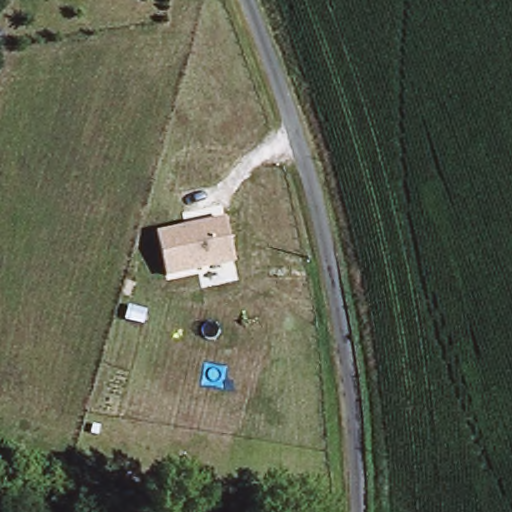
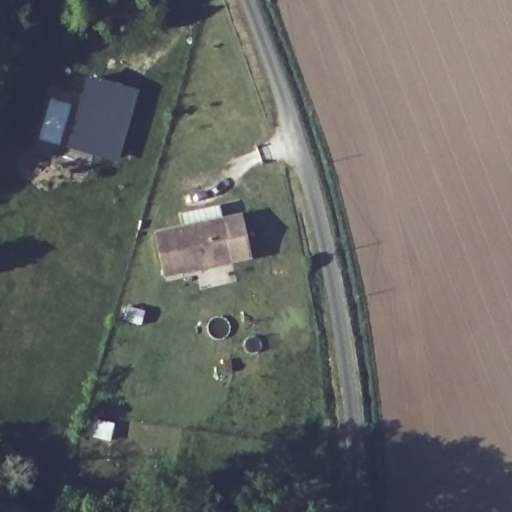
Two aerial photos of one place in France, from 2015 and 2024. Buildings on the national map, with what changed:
new [(69,148),(89,78),(139,92),(119,163),(69,148)]
unchanged [(224,215),(235,263),(166,277),(156,232),(224,215)]

